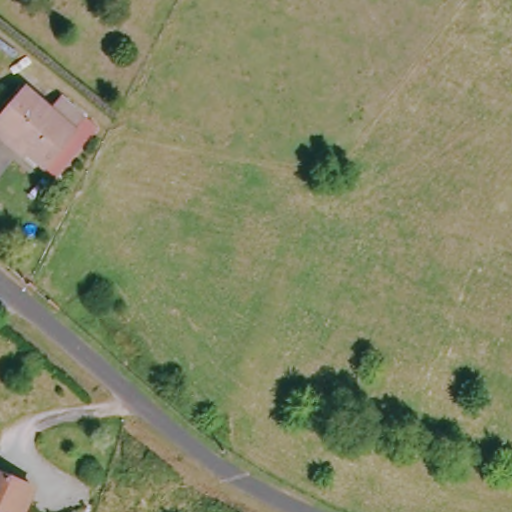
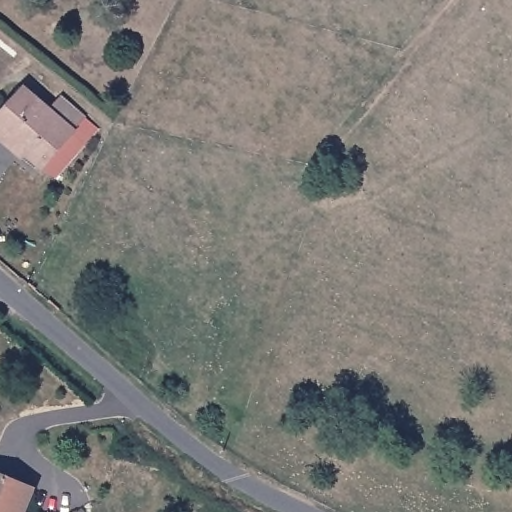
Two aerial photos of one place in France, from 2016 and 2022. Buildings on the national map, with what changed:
unchanged [(23,89),(49,114),(68,132),(36,169),(19,152),(0,134),(0,113),(23,89)]
unchanged [(68,132),(49,114),(61,102),(92,133),(49,180),(36,169),(68,132)]
unchanged [(16,512),(15,511),(14,512),(0,512),(0,480),(28,491),(21,512),(16,512)]

